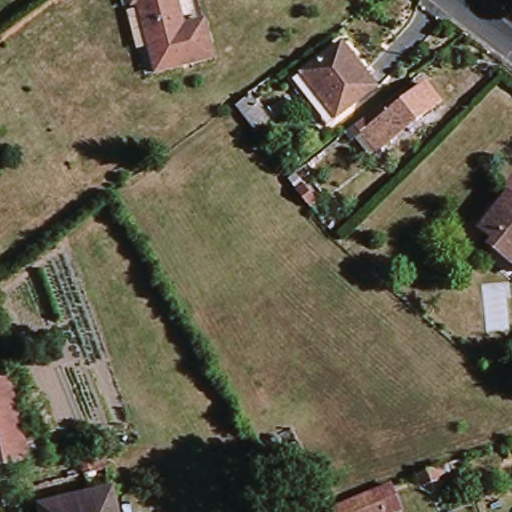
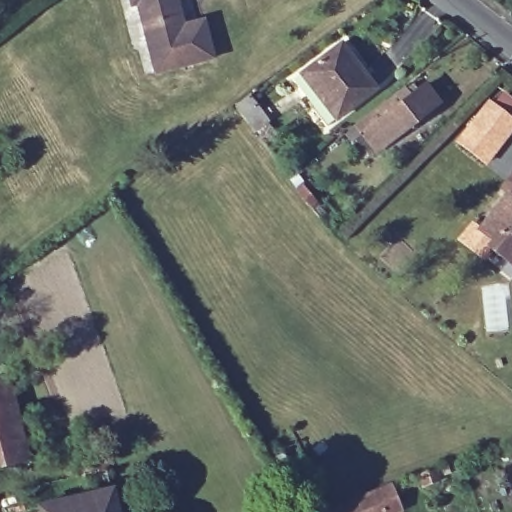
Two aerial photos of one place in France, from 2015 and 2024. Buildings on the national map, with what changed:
unchanged [(208,21),(219,60),(162,76),(144,9),(133,11),(131,0),(182,0),(189,27),(208,21)]
unchanged [(333,115),(304,77),(344,46),(374,84),(333,115)]
unchanged [(371,165),(362,151),(369,143),(358,130),(403,92),(412,98),(426,89),(438,105),(371,165)]
new [(487,99),(512,119),(512,131),(486,165),(455,141),(487,99)]
unchanged [(250,101),(267,124),(257,130),(240,109),(250,101)]
unchanged [(299,179),(292,184),(286,177),(293,172),(299,179)]
unchanged [(317,204),(312,207),(301,191),(306,188),(317,204)]
unchanged [(491,243),(477,232),(504,198),(512,204),(512,267),(488,249),(491,243)]
demolished [(476,323),(459,323),(458,301),(473,300),(476,323)]
unchanged [(34,461),(0,468),(0,381),(18,377),(34,461)]
unchanged [(40,487),(91,476),(87,457),(105,453),(120,512),(45,512),(40,487)]
unchanged [(424,483),(420,475),(434,469),(438,478),(424,483)]
unchanged [(396,512),(340,512),(397,488),(405,508),(396,512)]

